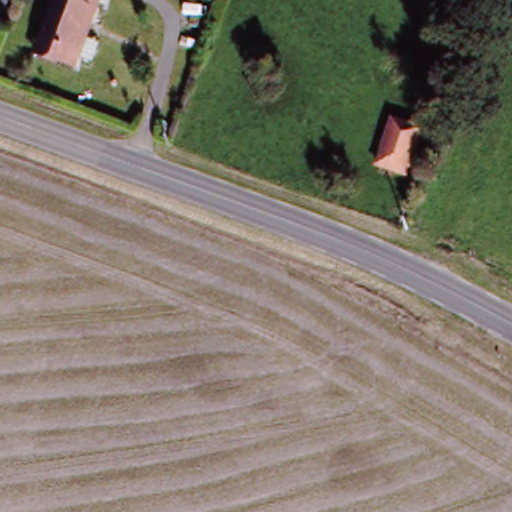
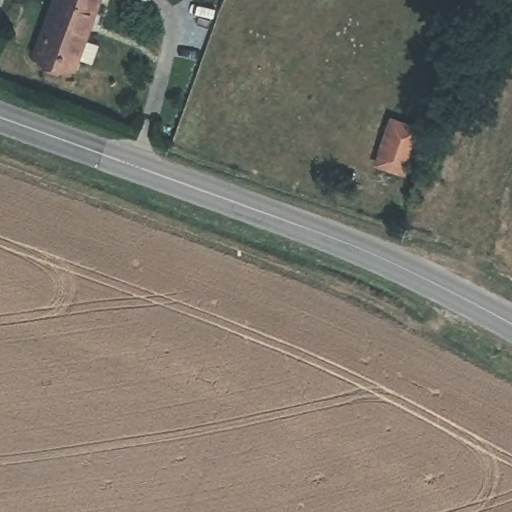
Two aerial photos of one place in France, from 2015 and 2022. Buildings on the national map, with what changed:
unchanged [(93,0),(73,60),(35,49),(53,0),(93,0)]
unchanged [(371,161),(387,120),(416,131),(399,172),(371,161)]

